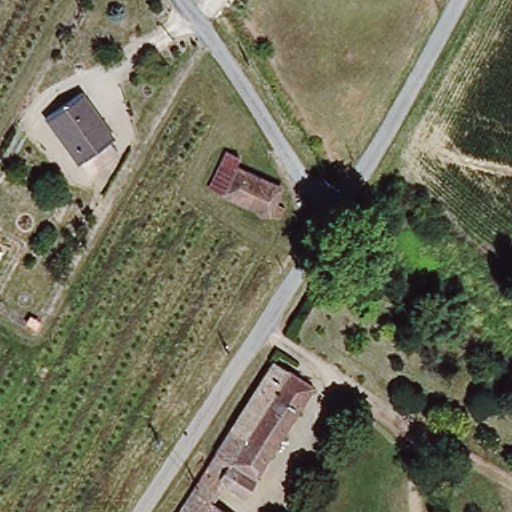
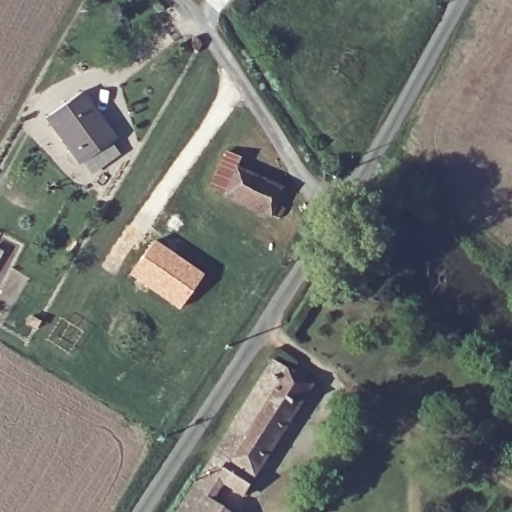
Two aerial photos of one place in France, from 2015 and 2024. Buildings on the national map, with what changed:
unchanged [(109,138),(77,164),(44,118),(76,96),(109,138)]
unchanged [(281,180),(273,199),(280,204),(274,219),(206,180),(221,152),(281,180)]
new [(153,239),(204,274),(178,310),(128,274),(153,239)]
unchanged [(180,512),(268,366),(308,390),(243,497),(227,487),(236,471),(227,465),(203,501),(196,512),(180,512)]
unchanged [(196,512),(203,501),(219,512),(196,512)]

